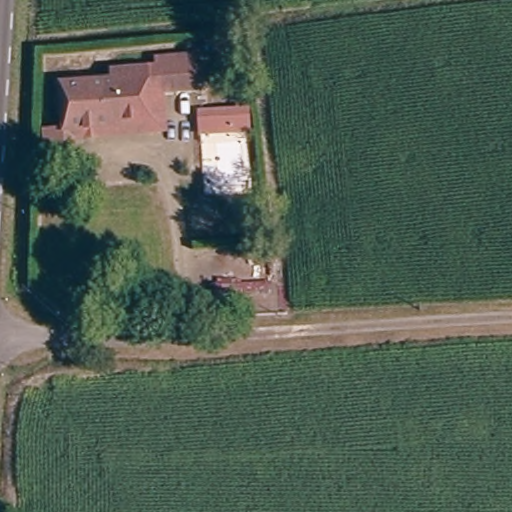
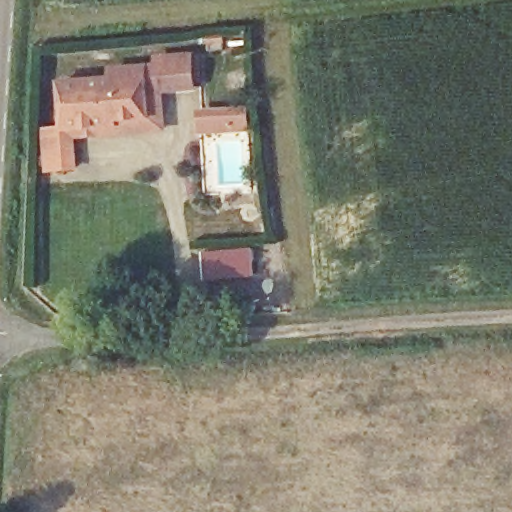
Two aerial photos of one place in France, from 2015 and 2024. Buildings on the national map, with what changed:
unchanged [(80,80),(125,75),(124,64),(164,60),(164,56),(201,52),(204,81),(166,85),(165,72),(153,74),(156,109),(124,112),(124,115),(84,119),(80,80)]
unchanged [(84,119),(124,115),(124,112),(156,109),(153,74),(165,72),(166,85),(170,122),(79,132),(81,159),(58,162),(54,122),(84,119)]
unchanged [(238,113),(253,111),(254,126),(239,127),(238,113)]
new [(217,272),(204,273),(203,253),(254,248),(256,277),(218,280),(217,272)]

